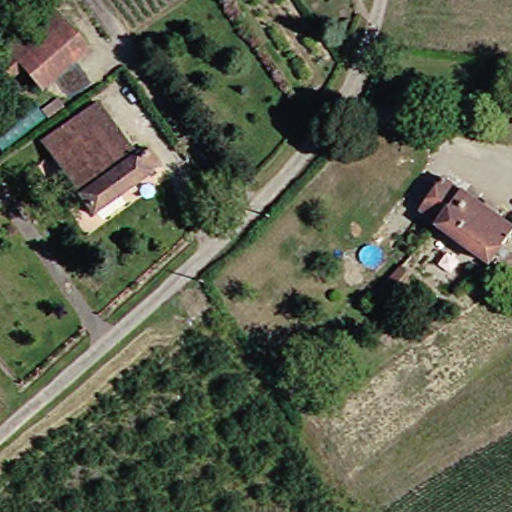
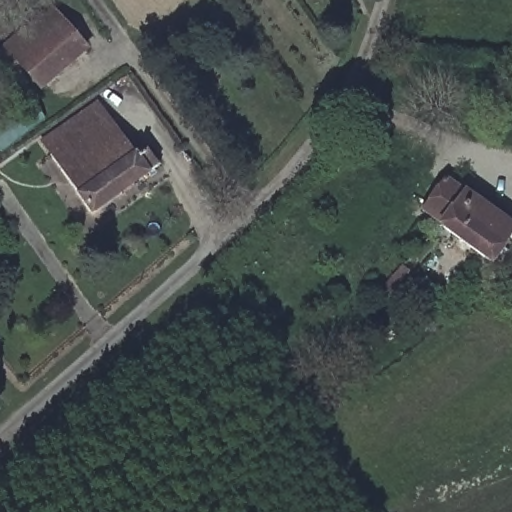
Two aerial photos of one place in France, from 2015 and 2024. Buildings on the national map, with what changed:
unchanged [(0,72),(0,46),(45,7),(58,21),(12,61),(0,72)]
unchanged [(35,88),(12,61),(58,21),(81,49),(35,88)]
unchanged [(57,171),(36,141),(94,101),(115,130),(57,171)]
unchanged [(132,154),(143,146),(155,163),(86,212),(57,171),(115,130),(132,154)]
unchanged [(512,229),(487,263),(435,225),(436,224),(417,210),(441,178),(459,192),(460,191),(512,228),(512,229)]
unchanged [(382,299),(377,295),(402,265),(407,269),(382,299)]

